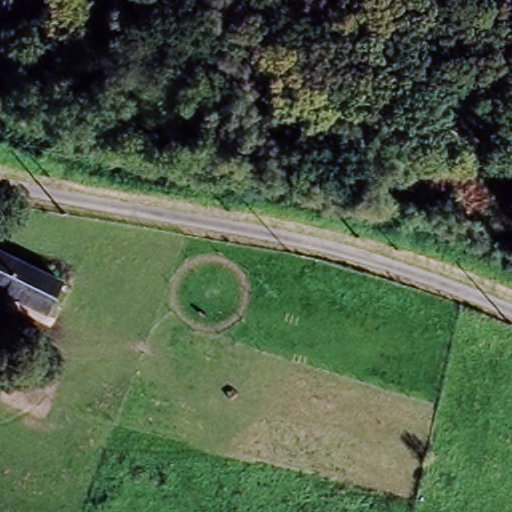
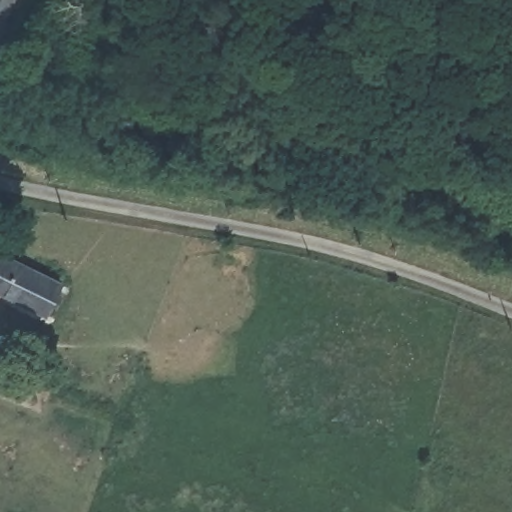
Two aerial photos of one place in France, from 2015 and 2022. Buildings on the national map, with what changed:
unchanged [(0,46),(0,0),(18,0),(0,46)]
unchanged [(65,282),(51,316),(0,291),(0,248),(65,282)]

